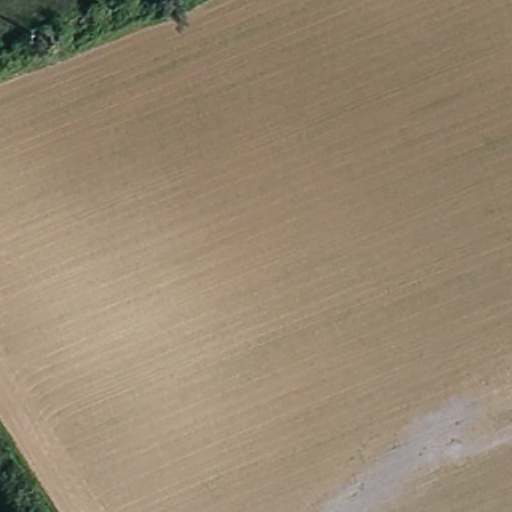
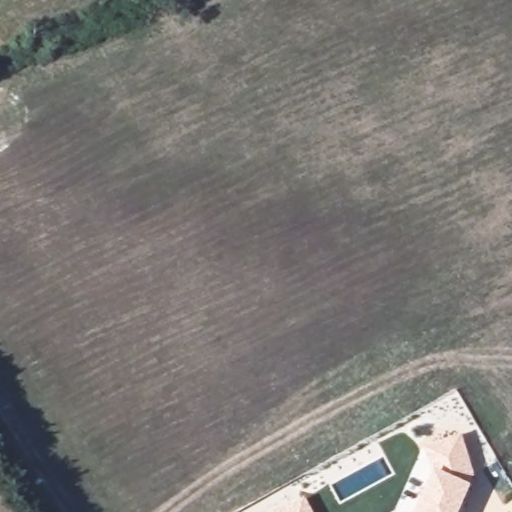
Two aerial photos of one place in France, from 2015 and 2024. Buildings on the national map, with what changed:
new [(422,447),(462,435),(473,476),(469,486),(457,512),(413,512),(430,473),(422,447)]
new [(312,512),(275,512),(303,497),(312,512)]

